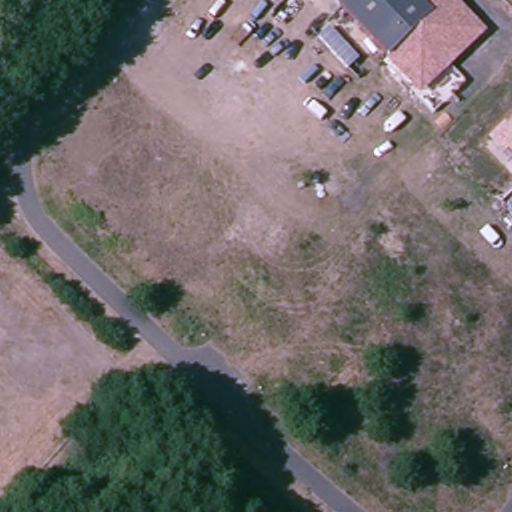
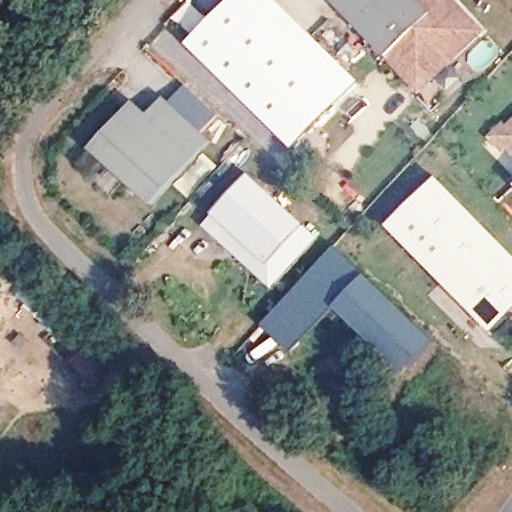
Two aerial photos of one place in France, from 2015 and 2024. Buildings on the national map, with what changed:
new [(233,0),(254,0),(286,32),(265,53),(222,11),(233,0)]
unchanged [(431,12),(388,55),(333,0),(419,0),(431,12)]
unchanged [(431,12),(419,0),(457,0),(487,31),(421,95),(388,55),(431,12)]
new [(222,11),(265,53),(286,32),(352,97),(301,146),(193,39),(222,11)]
new [(137,104),(153,118),(169,100),(216,143),(157,207),(95,150),(137,104)]
unchanged [(509,151),(505,156),(487,137),(507,119),(510,124),(512,122),(512,154),(509,151)]
new [(252,176),(309,230),(308,230),(273,267),(217,214),(252,176)]
new [(441,177),(512,250),(512,320),(499,333),(393,224),(441,177)]
new [(217,214),(273,267),(308,230),(320,240),(274,289),(207,226),(217,214)]
new [(347,301),(315,334),(285,305),(341,245),(440,340),(415,367),(413,365),(408,370),(343,307),(348,302),(347,301)]
new [(285,305),(315,334),(297,352),(267,323),(285,305)]

